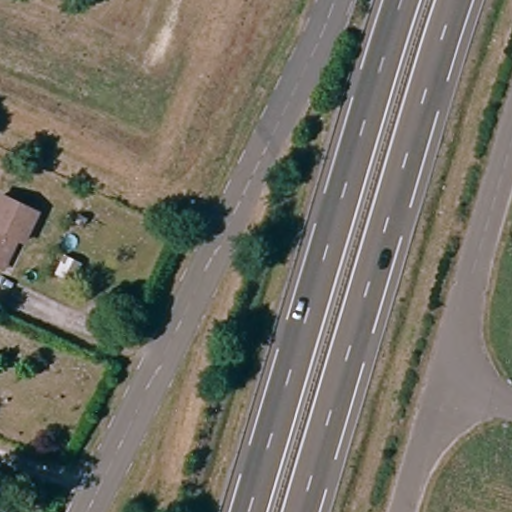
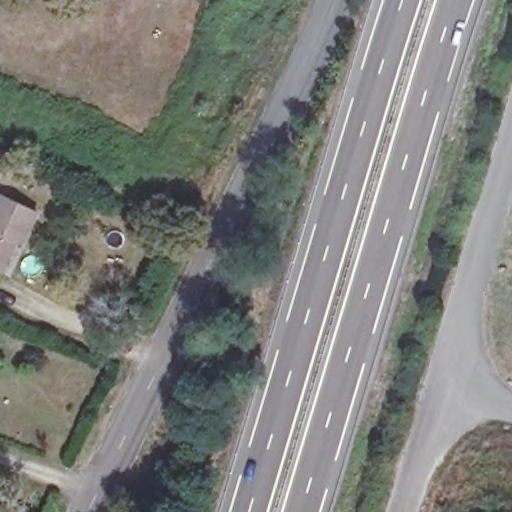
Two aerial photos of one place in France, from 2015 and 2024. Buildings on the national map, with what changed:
unchanged [(34,217),(24,243),(13,242),(3,268),(0,266),(0,201),(34,217)]

